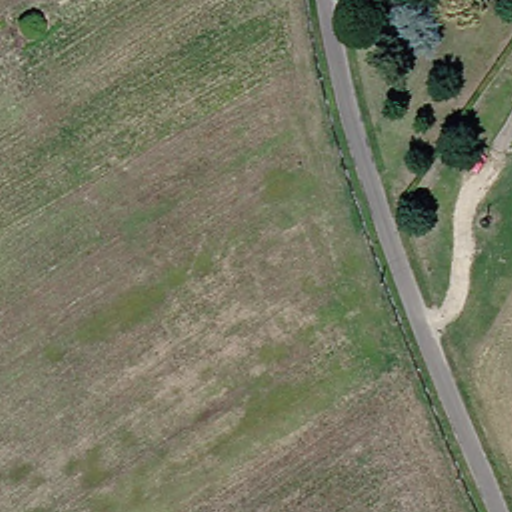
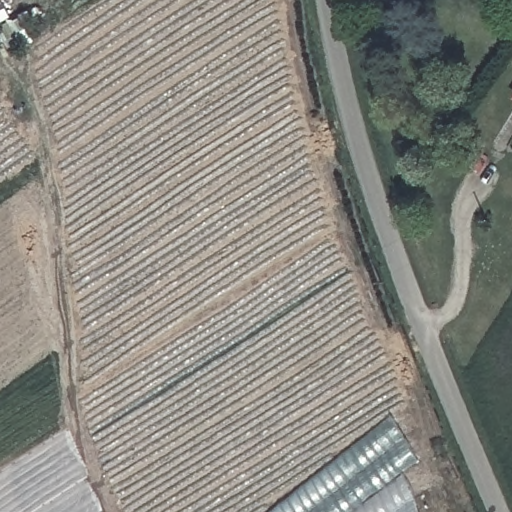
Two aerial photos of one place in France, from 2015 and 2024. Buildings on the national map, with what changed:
unchanged [(507,93),(512,85),(512,96),(507,93)]
new [(392,415),(420,459),(403,473),(415,494),(420,512),(271,512),(392,415)]

